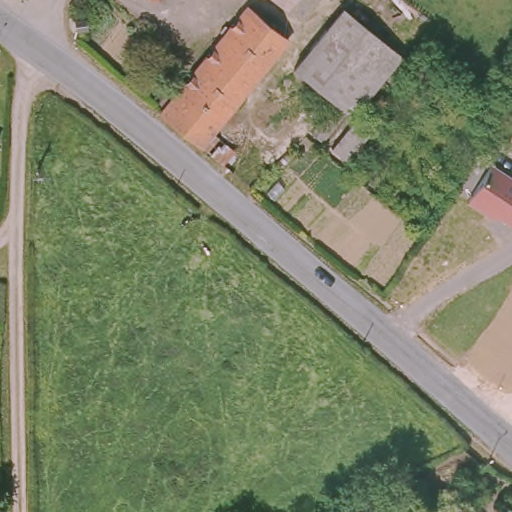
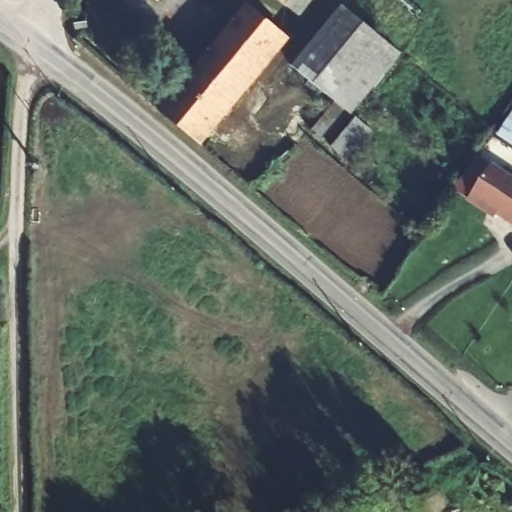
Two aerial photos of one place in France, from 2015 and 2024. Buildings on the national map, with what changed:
unchanged [(296,16),(275,0),(309,0),(296,16)]
unchanged [(249,7),(290,41),(200,145),(160,111),(249,7)]
unchanged [(305,130),(331,101),(290,67),(339,10),(395,57),(347,115),(343,112),(318,140),(305,130)]
unchanged [(75,18),(86,18),(86,29),(75,30),(75,18)]
new [(496,133),(512,113),(512,145),(496,133)]
unchanged [(326,147),(351,118),(367,131),(342,160),(326,147)]
unchanged [(492,163),(512,176),(512,229),(493,216),(490,220),(466,202),(492,163)]

